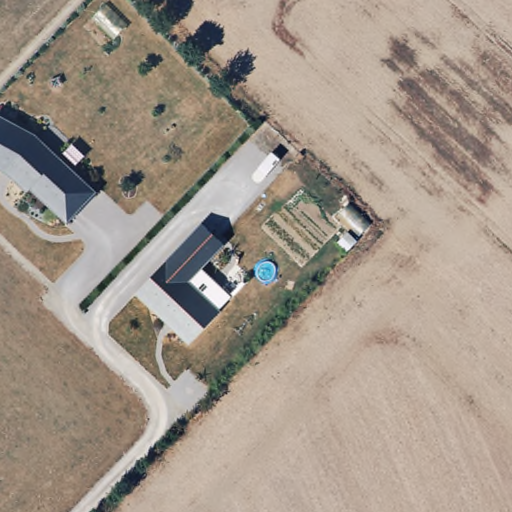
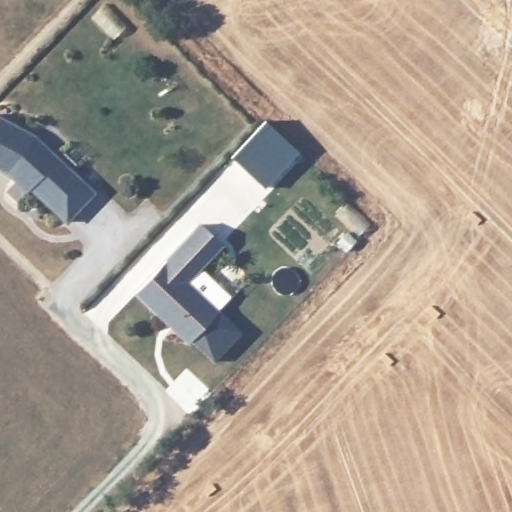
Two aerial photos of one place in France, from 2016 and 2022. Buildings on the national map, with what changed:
unchanged [(68,227),(32,192),(29,196),(9,177),(0,173),(0,120),(36,140),(96,197),(68,227)]
new [(265,121),(297,151),(263,187),(231,157),(265,121)]
unchanged [(164,321),(134,292),(200,223),(221,244),(186,280),(219,310),(190,339),(187,343),(164,321)]

